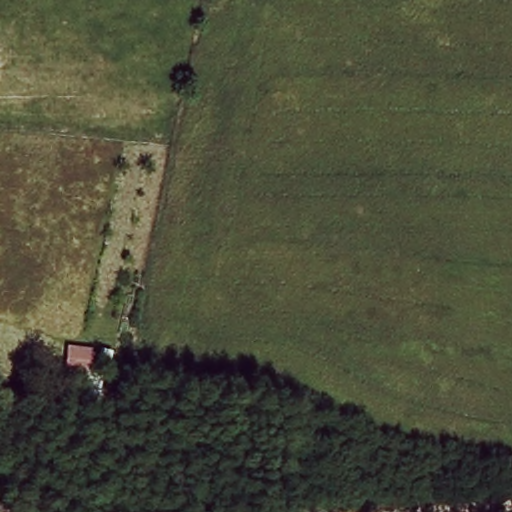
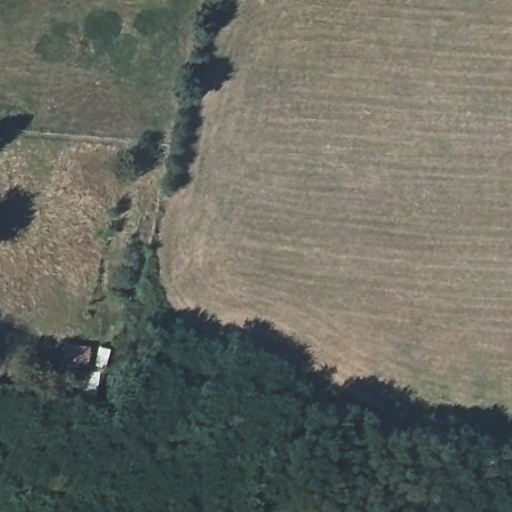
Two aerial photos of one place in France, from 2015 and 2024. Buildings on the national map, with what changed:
unchanged [(108,347),(105,373),(64,371),(66,346),(108,347)]

